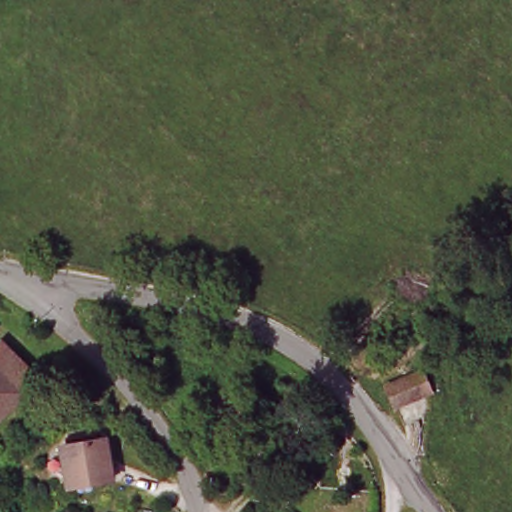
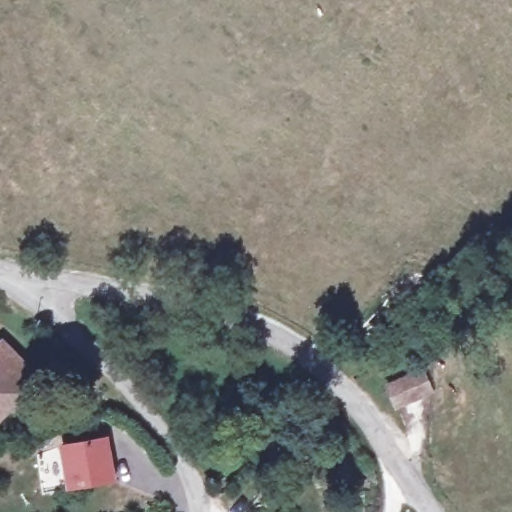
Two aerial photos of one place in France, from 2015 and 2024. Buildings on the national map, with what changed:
unchanged [(37,374),(23,389),(0,371),(0,341),(37,374)]
unchanged [(23,389),(0,412),(0,371),(23,389)]
unchanged [(422,391),(393,414),(381,395),(416,372),(422,391)]
unchanged [(109,483),(65,494),(54,451),(98,440),(109,483)]

